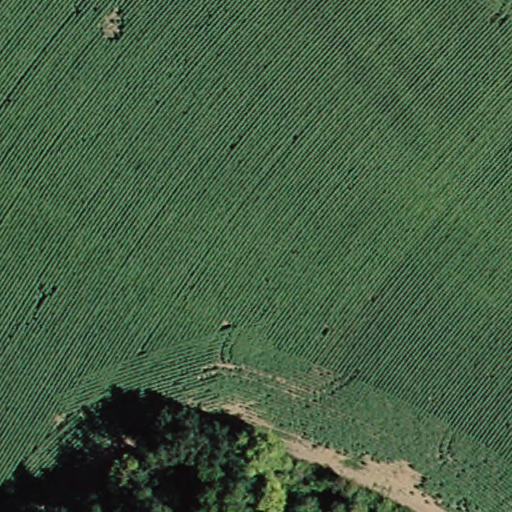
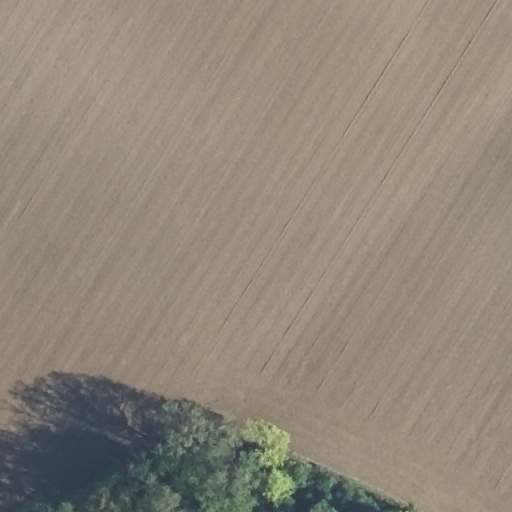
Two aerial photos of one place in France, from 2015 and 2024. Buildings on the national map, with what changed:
[]

